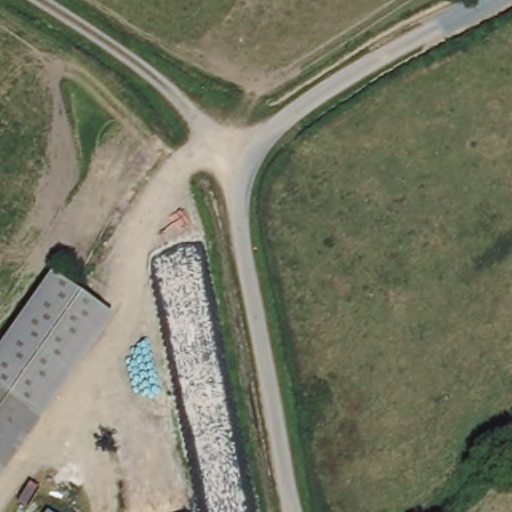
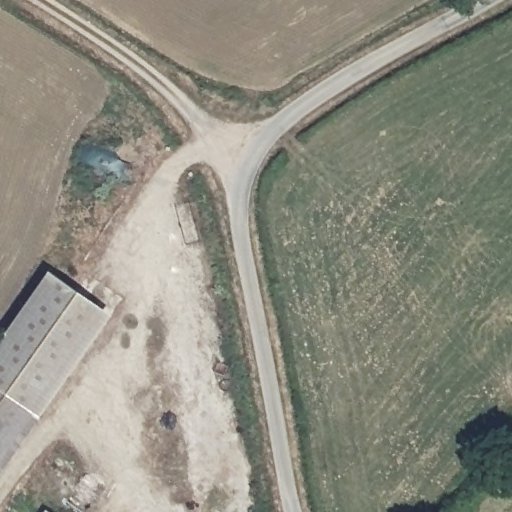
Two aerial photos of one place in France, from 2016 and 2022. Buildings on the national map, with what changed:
unchanged [(48,272),(109,317),(44,416),(0,385),(0,345),(48,272)]
unchanged [(44,416),(0,479),(0,385),(44,416)]
unchanged [(46,511),(47,512),(46,512),(46,511)]

